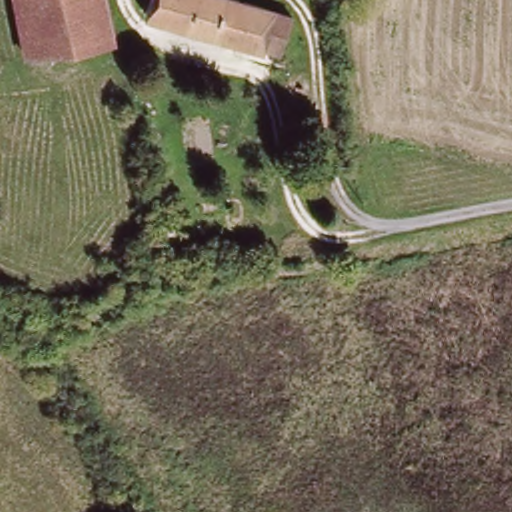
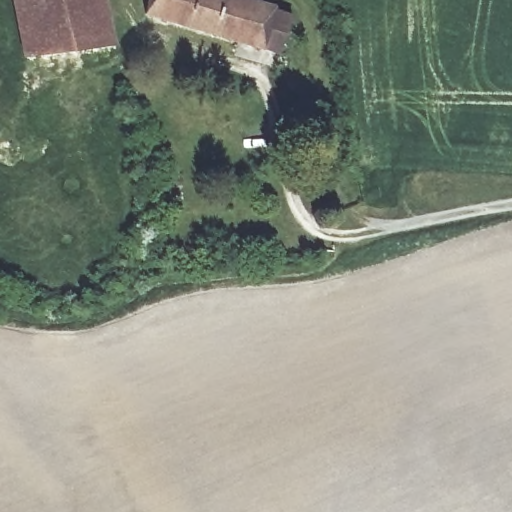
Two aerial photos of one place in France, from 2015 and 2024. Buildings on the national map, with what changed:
unchanged [(115,51),(29,61),(21,0),(110,0),(115,51)]
unchanged [(298,20),(288,56),(156,25),(158,5),(148,0),(229,0),(298,20)]

